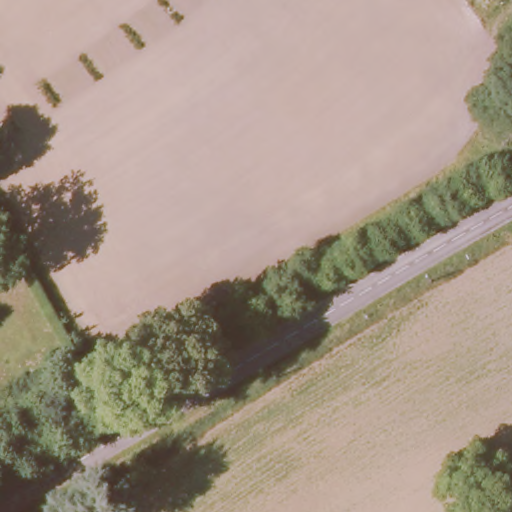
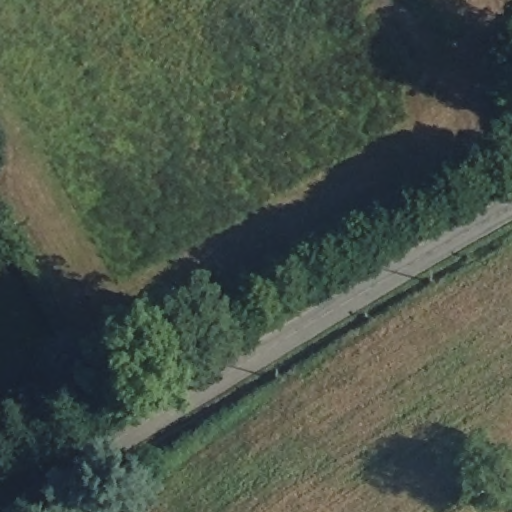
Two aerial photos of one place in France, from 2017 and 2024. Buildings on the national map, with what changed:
unchanged [(80,374),(87,385),(70,394),(63,382),(80,374)]

